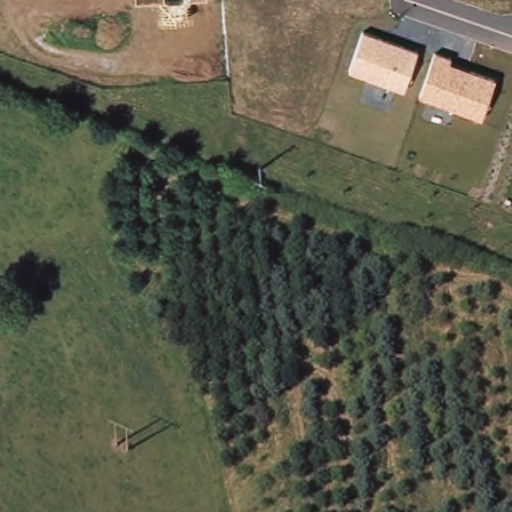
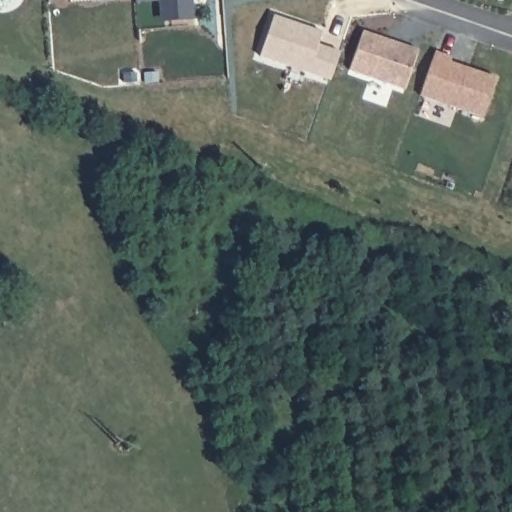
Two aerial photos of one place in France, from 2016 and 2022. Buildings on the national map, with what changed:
unchanged [(136,0),(201,0),(189,1),(191,21),(159,22),(158,2),(136,4),(136,0)]
new [(271,16),(319,33),(315,46),(337,53),(327,81),(257,57),(271,16)]
unchanged [(349,71),(364,32),(417,50),(403,91),(349,71)]
unchanged [(420,97),(435,52),(452,57),(450,62),(493,76),(480,118),(420,97)]

